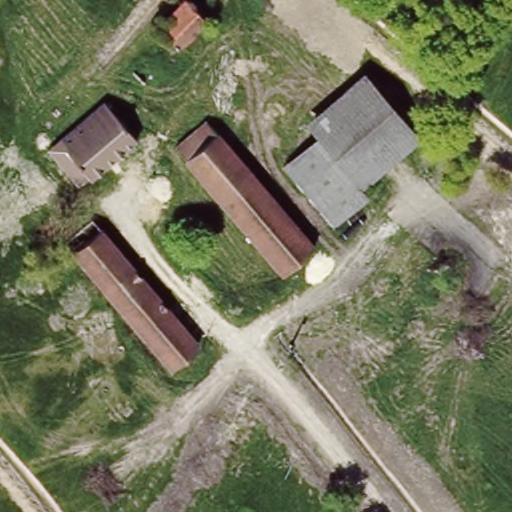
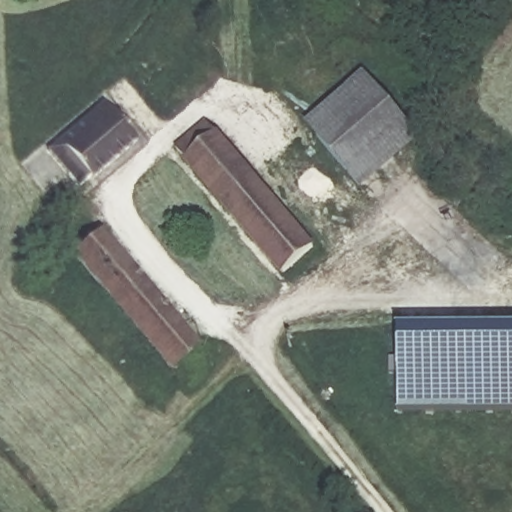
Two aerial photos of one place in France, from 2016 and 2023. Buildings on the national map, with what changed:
unchanged [(182,0),(203,21),(174,50),(159,38),(152,30),(182,0)]
unchanged [(371,93),(414,141),(358,192),(314,144),(371,93)]
unchanged [(106,101),(138,143),(93,179),(88,174),(79,184),(71,174),(81,164),(60,138),(106,101)]
unchanged [(306,247),(281,268),(178,143),(206,121),(306,247)]
unchanged [(201,355),(171,379),(68,249),(98,224),(201,355)]
new [(399,329),(512,329),(512,411),(401,412),(399,329)]

